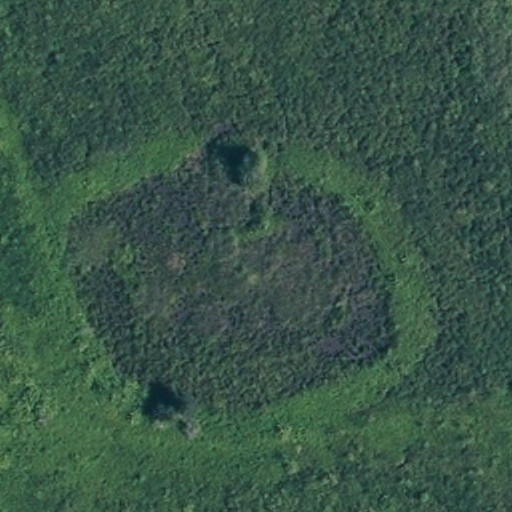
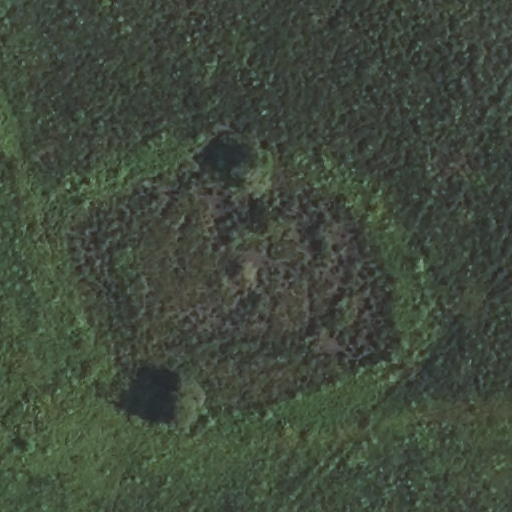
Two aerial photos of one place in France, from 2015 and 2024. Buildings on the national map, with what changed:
[]

